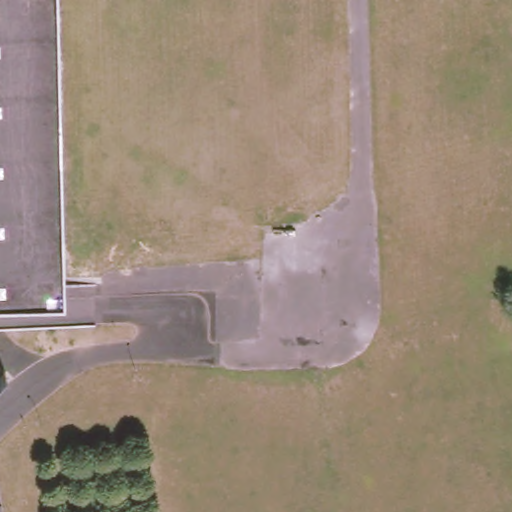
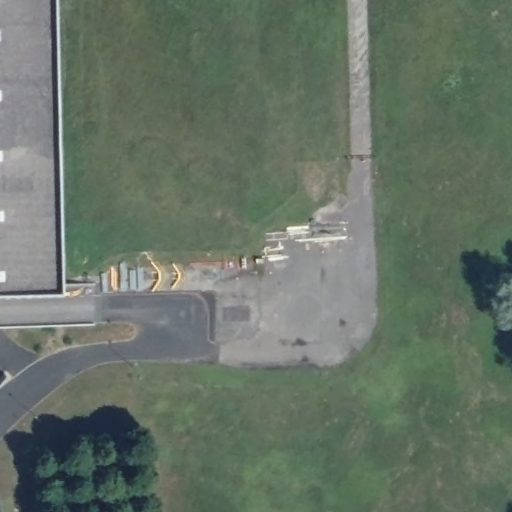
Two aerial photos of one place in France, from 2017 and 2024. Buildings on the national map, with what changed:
unchanged [(90,272),(89,313),(0,315),(0,0),(49,0),(55,273),(90,272)]

